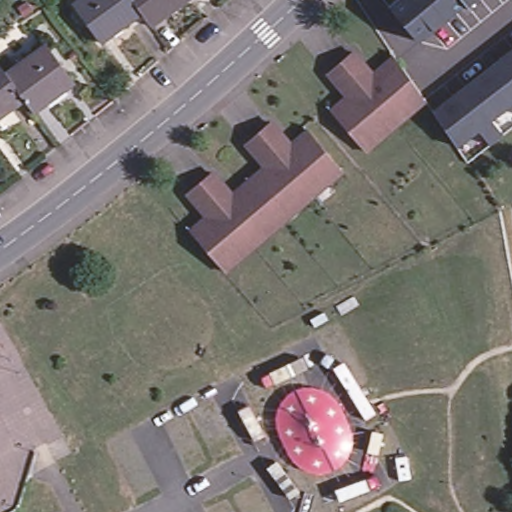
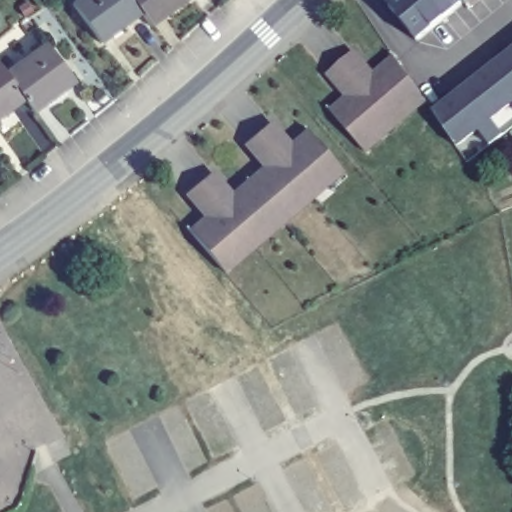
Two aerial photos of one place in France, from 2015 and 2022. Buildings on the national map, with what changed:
unchanged [(72,10),(86,0),(184,0),(150,25),(141,13),(100,45),(72,10)]
unchanged [(393,0),(474,0),(464,8),(462,4),(419,42),(387,6),(393,0)]
unchanged [(512,105),(495,119),(503,132),(490,143),(482,132),(460,149),(433,110),(512,47),(512,105)]
unchanged [(369,147),(338,111),(352,100),(350,98),(350,92),(330,68),(355,48),(375,72),(382,71),(384,73),(402,60),(411,72),(429,99),(414,111),(385,135),(369,147)]
unchanged [(25,103),(7,80),(45,50),(75,85),(34,115),(25,103)]
unchanged [(7,80),(25,103),(0,122),(0,72),(7,80)]
unchanged [(242,253),(226,265),(225,266),(195,229),(208,219),(207,217),(207,210),(187,186),(212,166),(232,189),(240,190),(242,192),(255,182),(268,171),(266,169),(267,163),(246,139),(272,119),(293,142),(300,143),(302,145),(315,134),(346,170),(330,183),(301,206),(286,218),(271,230),(256,242),(242,253)]

